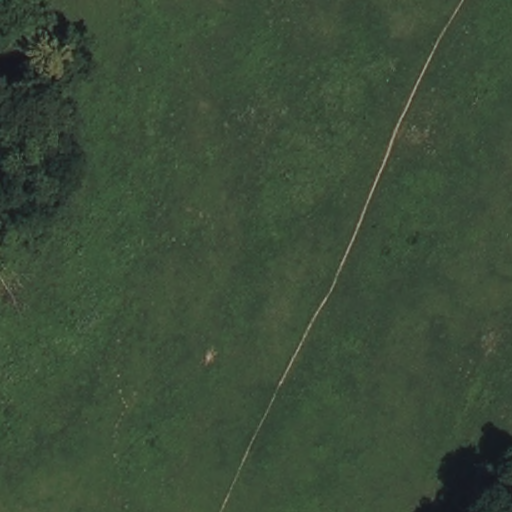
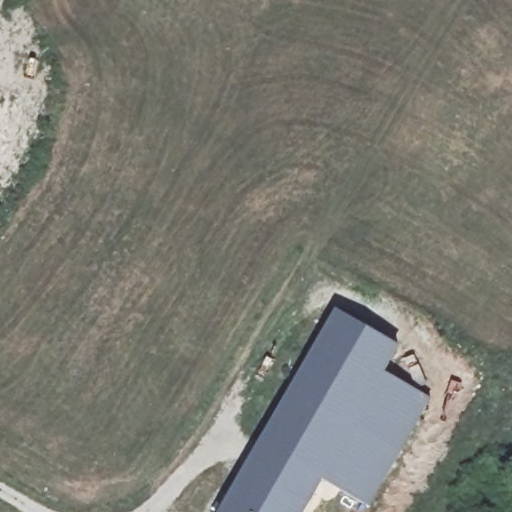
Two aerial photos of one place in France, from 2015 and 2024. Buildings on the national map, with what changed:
new [(304,512),(222,512),(338,310),(400,345),(386,371),(432,397),(370,506),(322,479),(304,512)]

